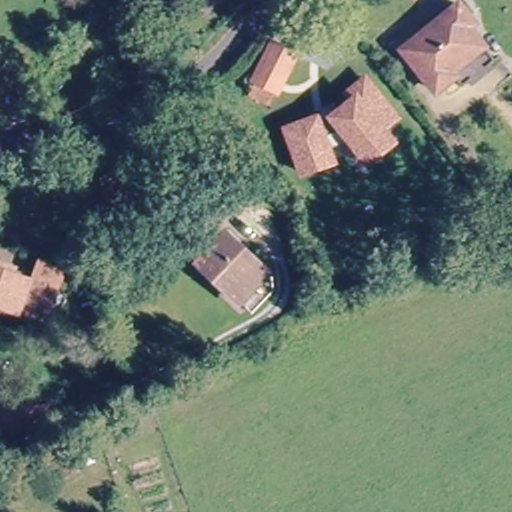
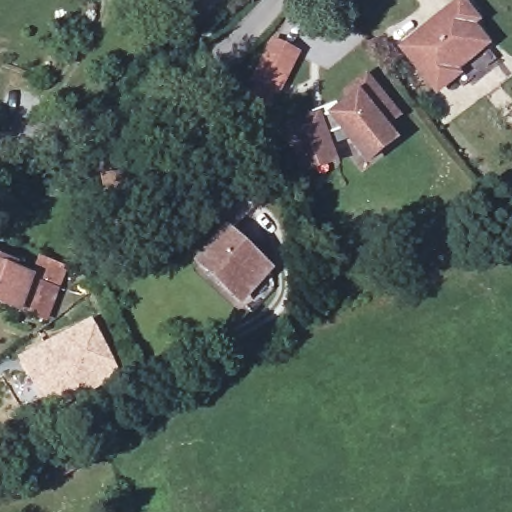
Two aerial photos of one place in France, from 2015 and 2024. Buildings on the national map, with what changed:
unchanged [(470,29),(485,46),(457,69),(460,73),(436,91),(405,51),(460,5),(476,25),(470,29)]
unchanged [(256,77),(254,76),(273,38),(298,50),(279,88),(276,86),(269,101),(249,91),(256,77)]
unchanged [(299,170),(295,156),(287,130),(320,120),(320,122),(333,118),(335,121),(355,105),(350,98),(368,83),(384,104),(396,119),(383,130),(388,136),(395,145),(369,165),(363,156),(342,131),(324,136),(327,147),(331,160),(299,170)]
unchanged [(135,217),(111,222),(101,177),(126,172),(135,217)]
unchanged [(268,272),(240,302),(200,264),(228,234),(268,272)]
unchanged [(0,307),(0,260),(30,270),(35,255),(66,268),(47,324),(0,307)]
new [(92,320),(121,377),(49,420),(17,359),(92,320)]

